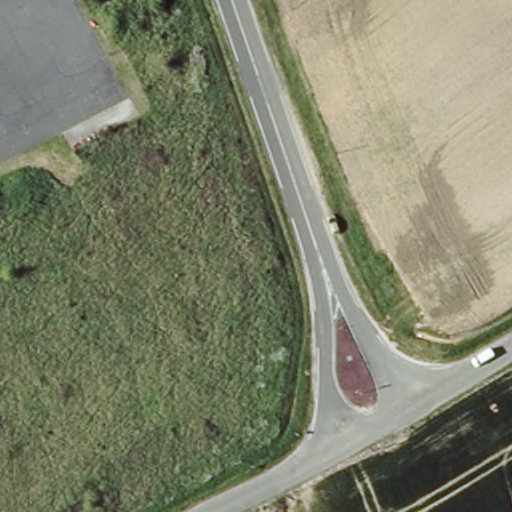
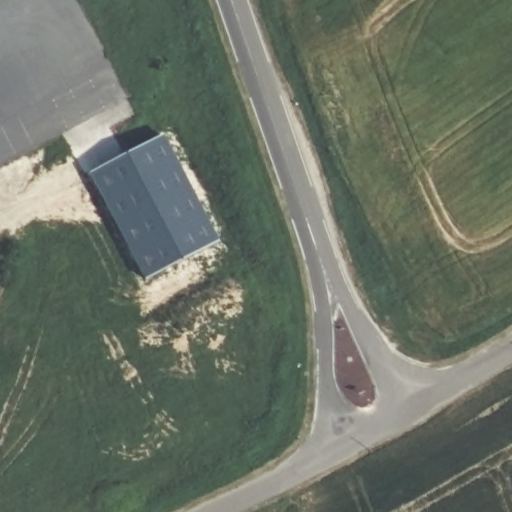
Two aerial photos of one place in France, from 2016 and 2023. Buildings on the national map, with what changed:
new [(163,136),(219,243),(147,280),(92,173),(163,136)]

